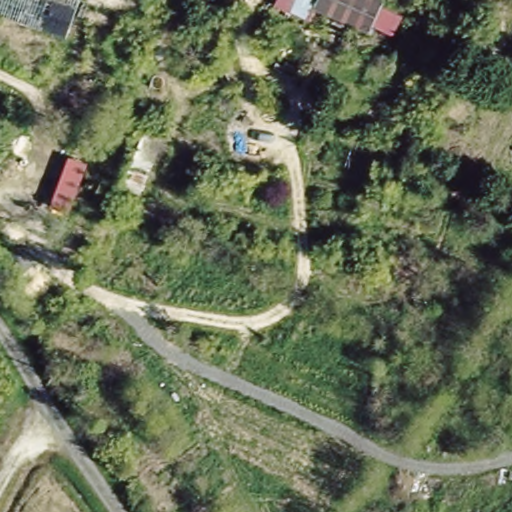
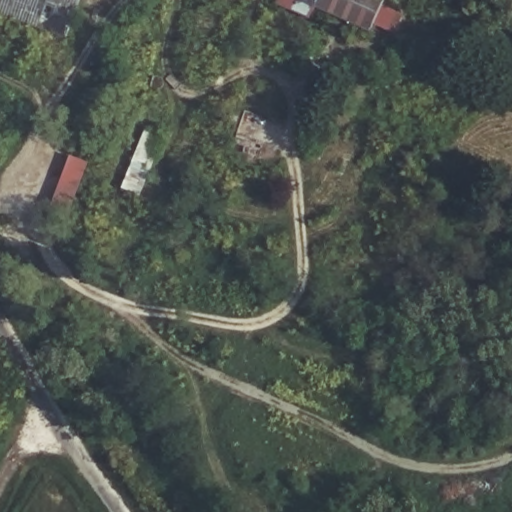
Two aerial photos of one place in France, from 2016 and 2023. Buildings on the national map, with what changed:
unchanged [(0,21),(0,0),(80,0),(65,43),(0,21)]
unchanged [(305,25),(287,19),(294,0),(380,0),(366,31),(315,12),(305,25)]
unchanged [(422,0),(400,54),(369,44),(373,35),(366,31),(380,0),(422,0)]
unchanged [(143,131),(165,142),(134,200),(114,188),(143,131)]
unchanged [(45,206),(67,152),(85,161),(64,216),(45,206)]

